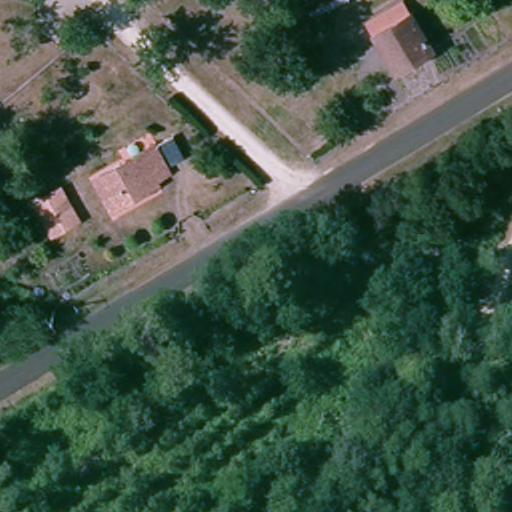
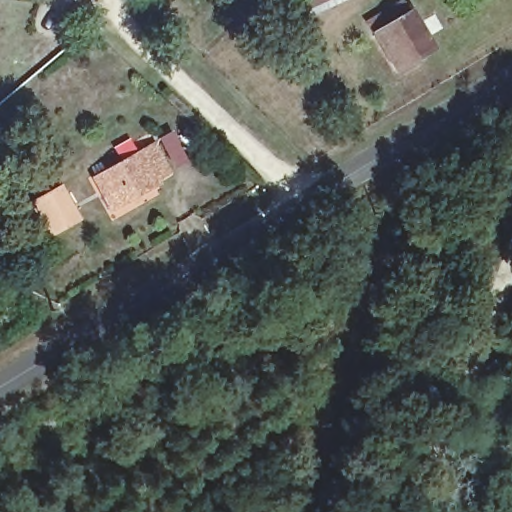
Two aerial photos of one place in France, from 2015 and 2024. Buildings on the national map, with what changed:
unchanged [(353,3),(317,19),(307,0),(351,0),(353,3)]
unchanged [(396,70),(376,31),(386,26),(380,15),(396,7),(401,18),(411,13),(433,50),(396,70)]
unchanged [(149,147),(168,178),(114,213),(94,181),(149,147)]
unchanged [(79,222),(56,237),(35,205),(57,190),(79,222)]
unchanged [(399,301),(379,322),(351,296),(371,274),(399,301)]

